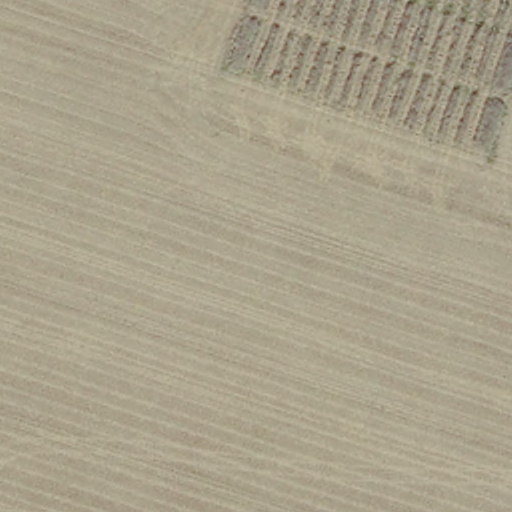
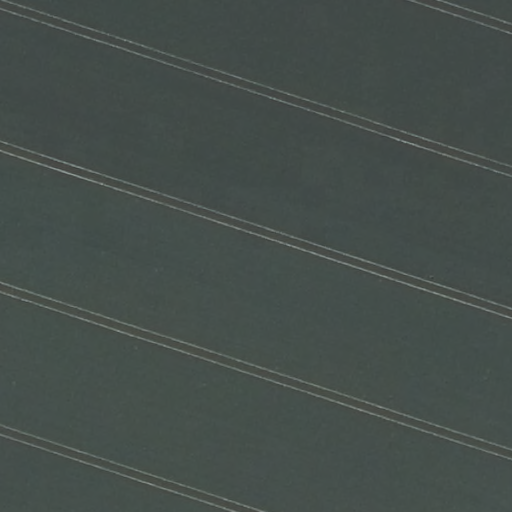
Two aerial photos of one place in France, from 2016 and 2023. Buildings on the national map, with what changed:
[]

